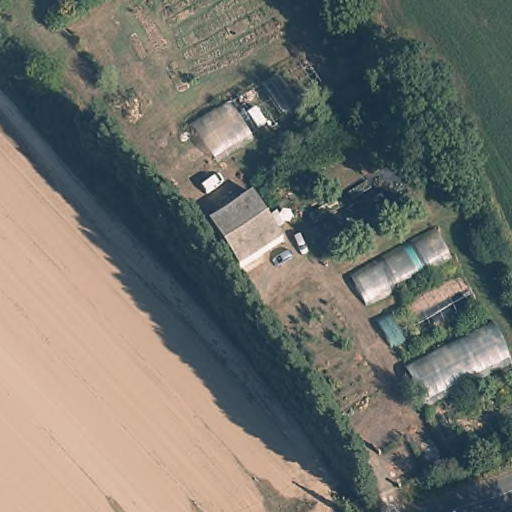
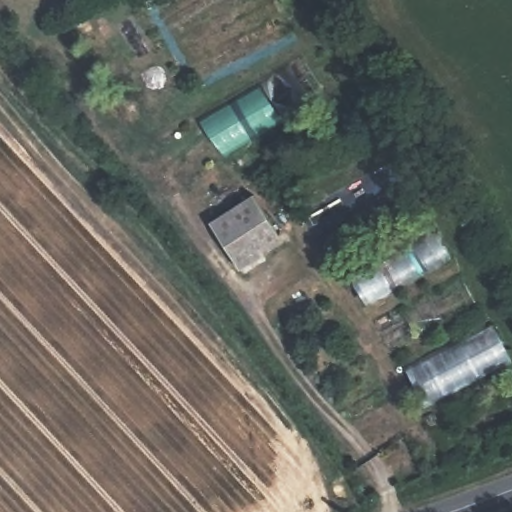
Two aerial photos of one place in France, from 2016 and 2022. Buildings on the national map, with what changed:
unchanged [(274,232),(233,262),(201,218),(242,188),(274,232)]

